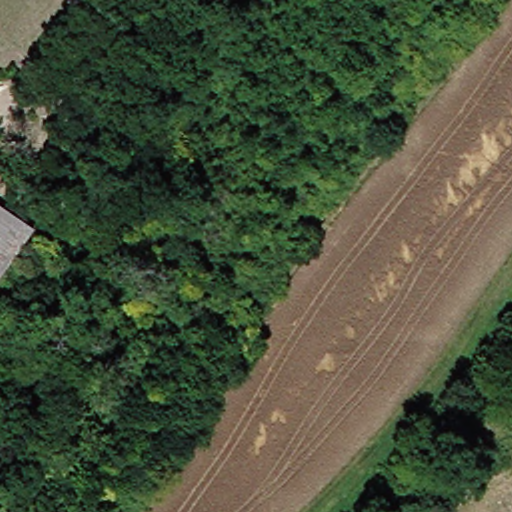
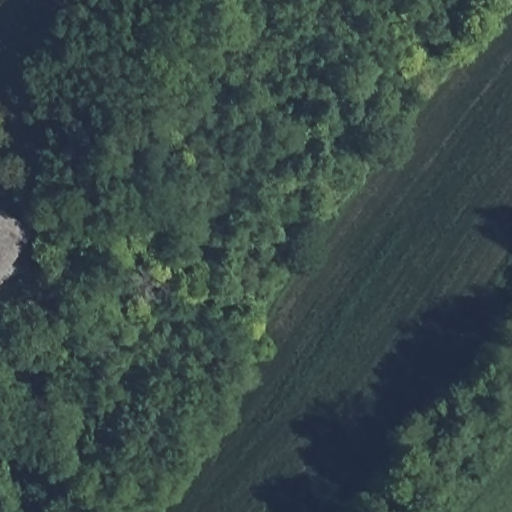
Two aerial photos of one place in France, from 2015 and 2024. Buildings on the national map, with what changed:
unchanged [(21,76),(41,98),(17,125),(3,111),(0,107),(0,97),(3,94),(21,76)]
unchanged [(0,201),(36,227),(0,280),(0,201)]
unchanged [(0,303),(0,295),(4,299),(0,303)]

